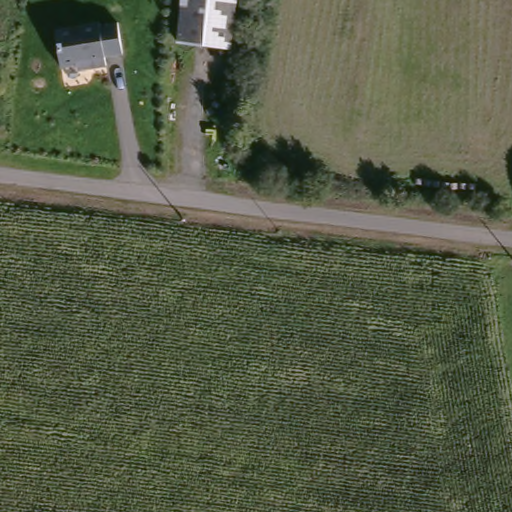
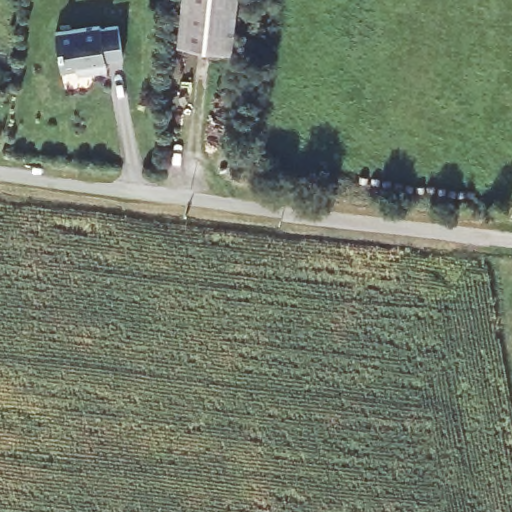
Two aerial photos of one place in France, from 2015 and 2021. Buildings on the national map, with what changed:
unchanged [(173,46),(179,0),(227,0),(219,54),(173,46)]
unchanged [(97,26),(98,30),(115,27),(120,59),(103,61),(103,70),(84,74),(83,67),(57,71),(51,34),(97,26)]
unchanged [(3,81),(0,80),(0,54),(8,55),(3,81)]

